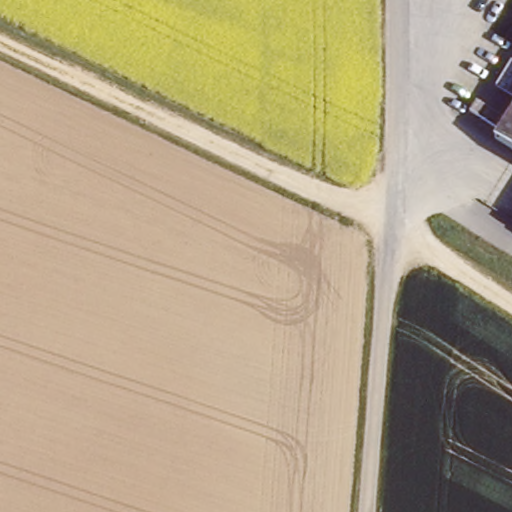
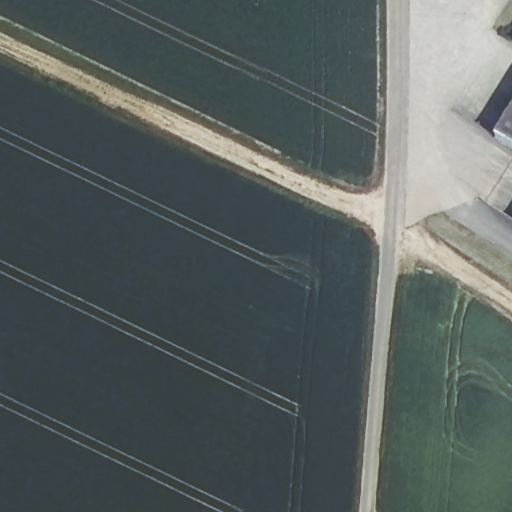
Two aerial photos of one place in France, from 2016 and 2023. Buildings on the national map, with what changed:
unchanged [(499,140),(512,118),(512,148),(499,140)]

